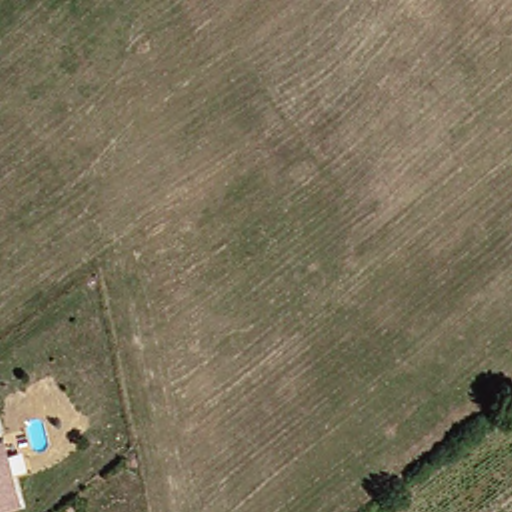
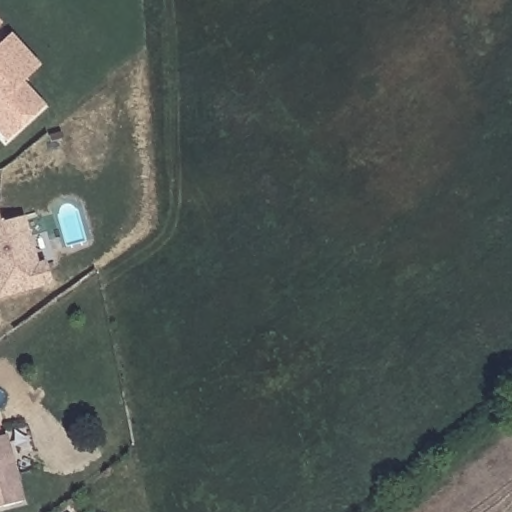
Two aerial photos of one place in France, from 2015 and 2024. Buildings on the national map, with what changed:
new [(0,27),(0,23),(2,26),(0,27)]
new [(30,76),(24,81),(46,104),(12,137),(0,125),(0,45),(1,46),(30,76)]
new [(24,217),(30,236),(49,230),(57,257),(38,263),(46,262),(52,281),(1,296),(0,293),(0,218),(1,224),(24,217)]
unchanged [(0,511),(0,442),(20,505),(0,511)]

